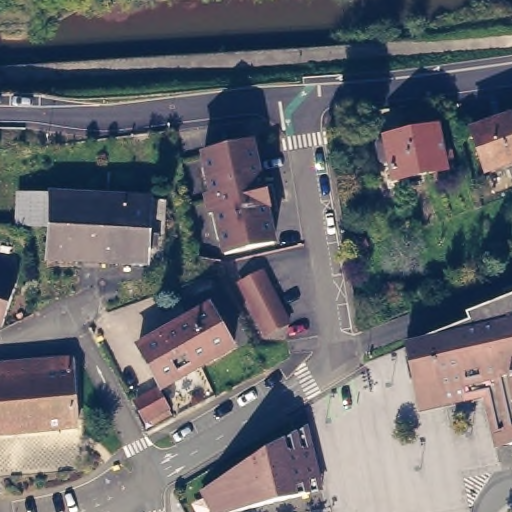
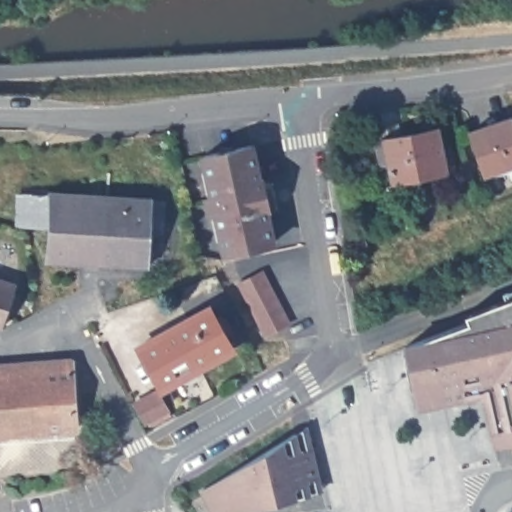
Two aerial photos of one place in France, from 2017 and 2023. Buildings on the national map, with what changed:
unchanged [(512,171),(506,173),(502,161),(486,166),(472,125),(512,111),(512,113),(512,171)]
unchanged [(438,122),(447,163),(395,174),(386,133),(438,122)]
unchanged [(255,137),(261,169),(265,169),(272,200),(268,200),(275,234),(227,245),(219,205),(213,206),(210,190),(215,190),(205,147),(255,137)]
unchanged [(150,189),(147,225),(155,225),(155,241),(147,241),(147,258),(47,252),(47,222),(18,221),(20,183),(150,189)]
unchanged [(265,273),(292,325),(270,337),(242,285),(265,273)]
unchanged [(20,281),(5,324),(0,322),(0,274),(20,281)]
unchanged [(417,393),(412,375),(417,374),(405,343),(469,318),(467,311),(466,312),(465,311),(512,293),(512,440),(510,440),(495,375),(417,393)]
unchanged [(218,320),(223,317),(230,329),(225,332),(232,345),(160,385),(137,343),(209,304),(218,320)]
unchanged [(57,358),(70,357),(75,425),(0,432),(0,363),(57,358)]
unchanged [(496,443),(485,392),(420,406),(417,393),(495,375),(510,440),(496,443)]
unchanged [(167,411),(150,420),(147,415),(143,418),(135,401),(155,389),(167,411)]
unchanged [(300,424),(316,487),(305,490),(216,512),(209,512),(197,488),(290,430),(300,424)]

